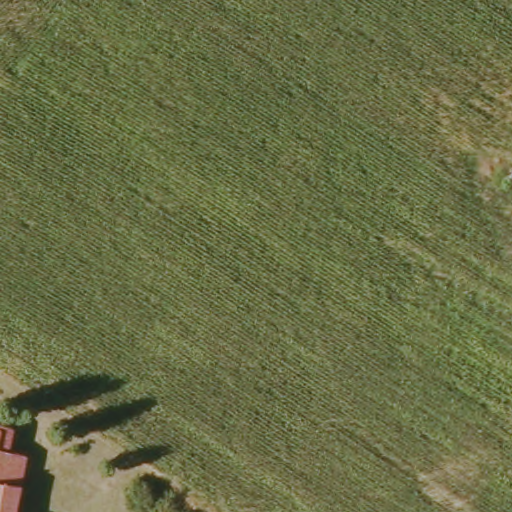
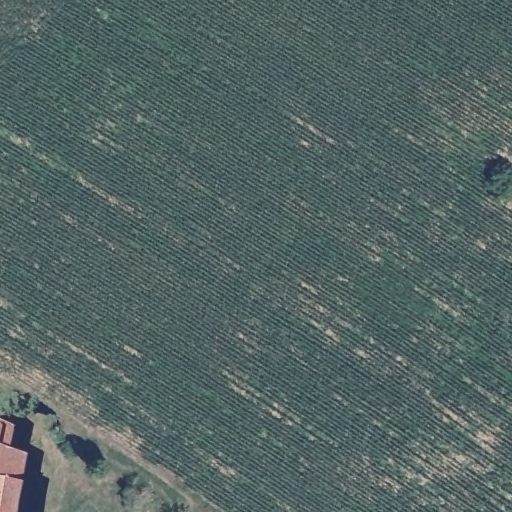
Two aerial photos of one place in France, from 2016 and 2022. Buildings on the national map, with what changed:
unchanged [(19,426),(18,431),(14,443),(30,449),(29,454),(33,454),(24,512),(0,512),(0,425),(1,421),(19,426)]

